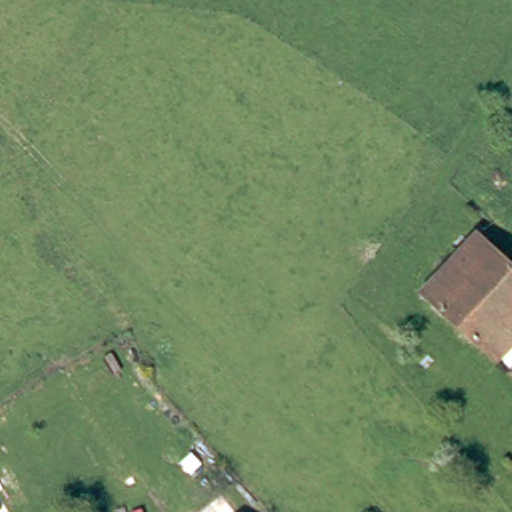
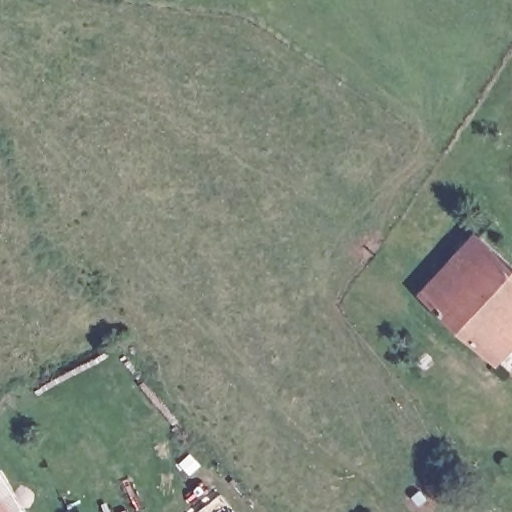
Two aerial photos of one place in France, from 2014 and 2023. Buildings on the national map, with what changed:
unchanged [(477,232),(512,266),(512,339),(493,359),(420,291),(477,232)]
new [(13,512),(0,512),(0,491),(13,512)]

